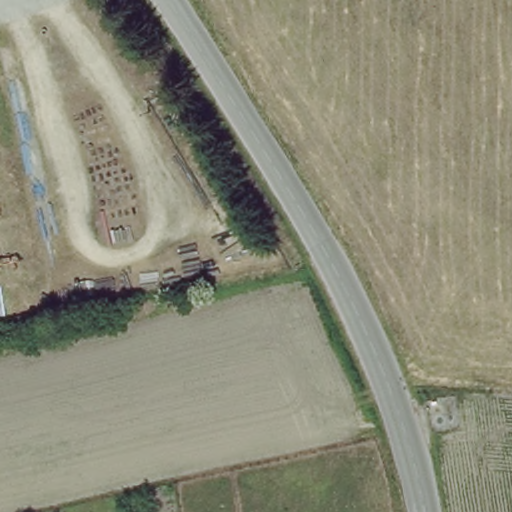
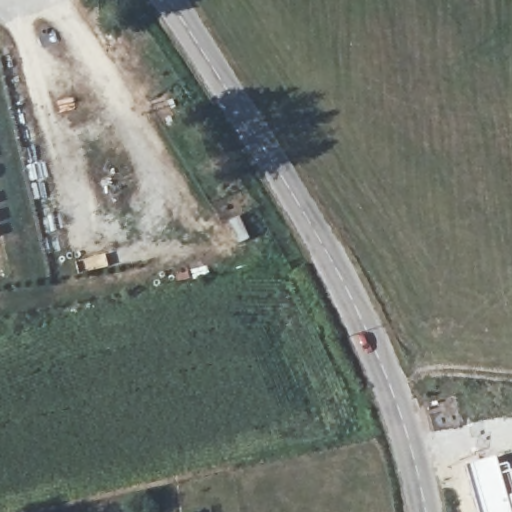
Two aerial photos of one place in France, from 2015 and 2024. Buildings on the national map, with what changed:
new [(512,470),(512,512),(478,512),(465,465),(498,456),(501,465),(509,463),(512,470)]

